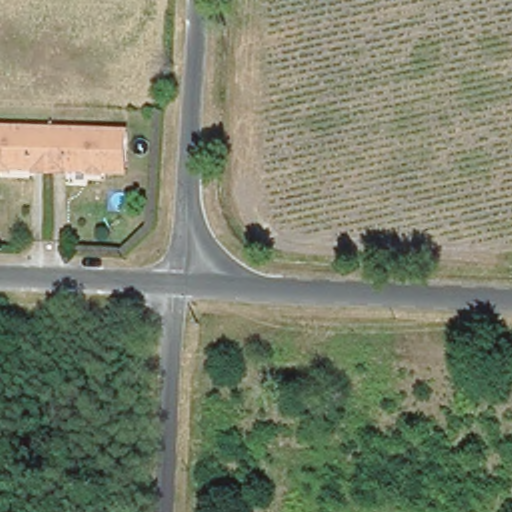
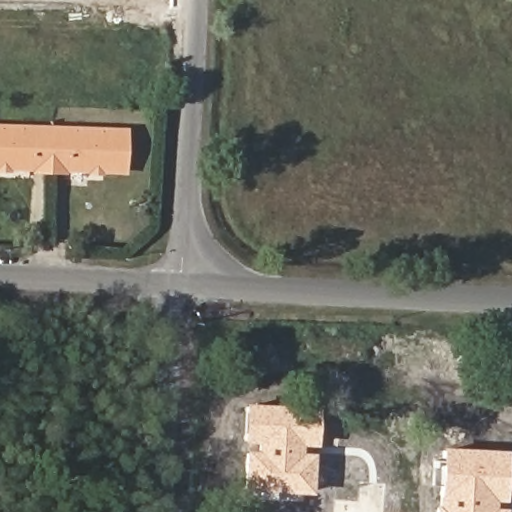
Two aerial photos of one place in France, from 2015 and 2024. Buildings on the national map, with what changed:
unchanged [(126,124),(129,165),(53,166),(53,125),(126,124)]
unchanged [(53,166),(0,166),(0,126),(53,125),(53,166)]
new [(313,495),(243,490),(245,451),(258,452),(258,444),(243,443),(245,404),(319,409),(317,448),(302,447),(302,454),(315,455),(313,495)]
new [(509,452),(506,512),(436,512),(438,495),(441,448),(509,452)]

